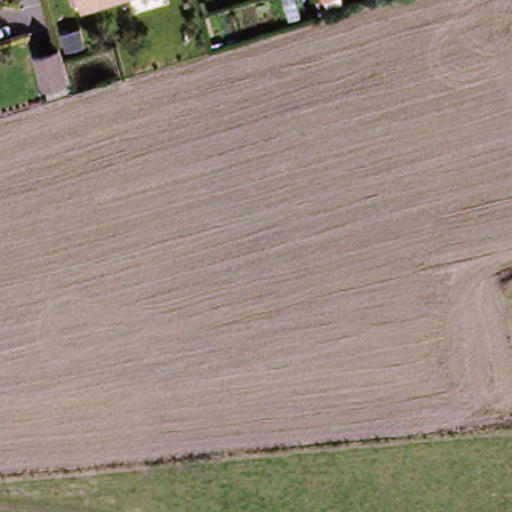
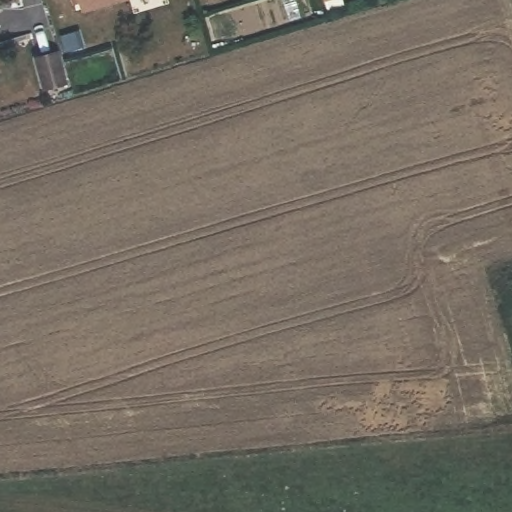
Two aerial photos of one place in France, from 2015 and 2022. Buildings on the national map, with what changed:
unchanged [(88,0),(77,2),(77,0),(116,0),(89,7),(88,0)]

